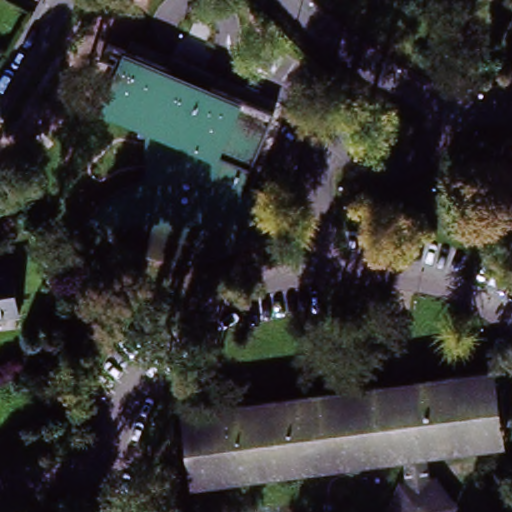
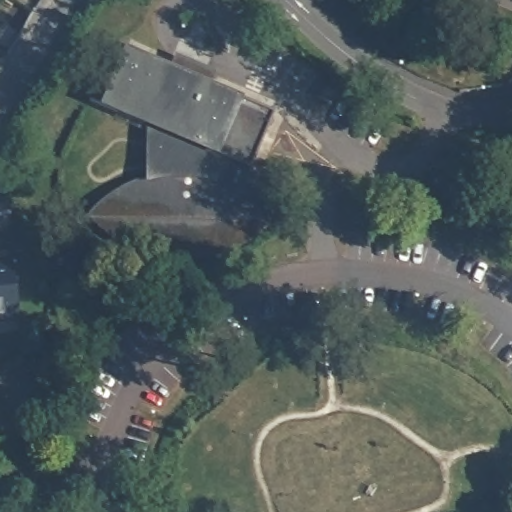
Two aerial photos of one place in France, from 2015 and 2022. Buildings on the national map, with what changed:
unchanged [(167,70),(175,56),(215,75),(210,89),(272,116),(242,191),(252,195),(275,220),(242,250),(231,248),(226,262),(86,221),(103,204),(119,190),(132,183),(145,178),(145,130),(100,112),(123,51),(167,70)]
unchanged [(12,258),(23,312),(0,317),(0,261),(12,258)]
demolished [(435,480),(452,501),(447,512),(401,512),(398,508),(408,484),(413,483),(410,452),(195,479),(187,408),(497,367),(507,438),(427,449),(430,481),(435,480)]

